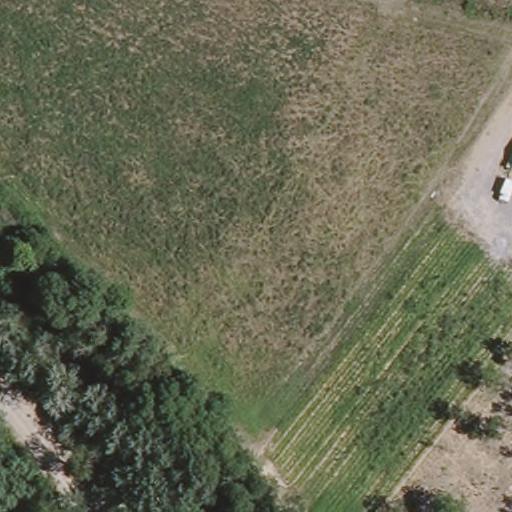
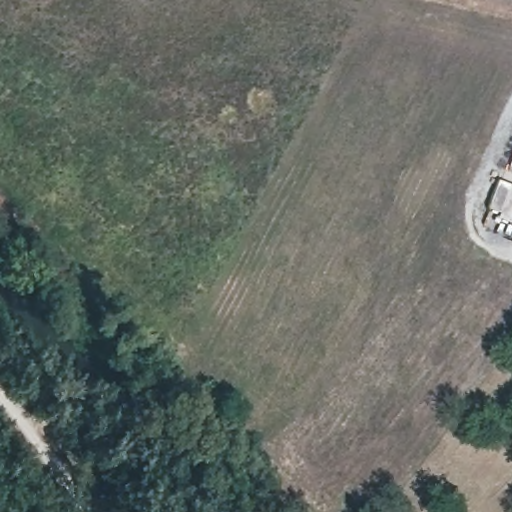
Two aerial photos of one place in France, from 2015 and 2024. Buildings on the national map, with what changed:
[]

